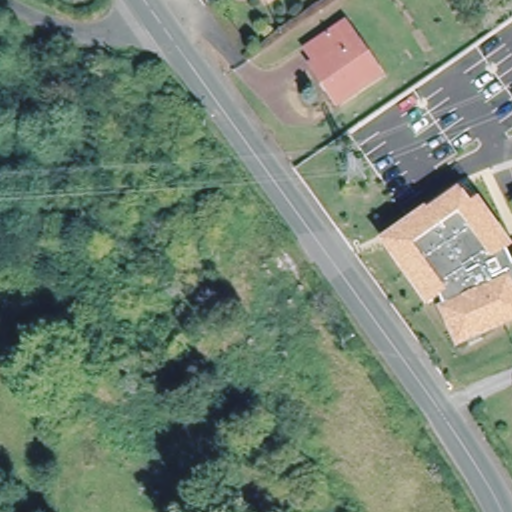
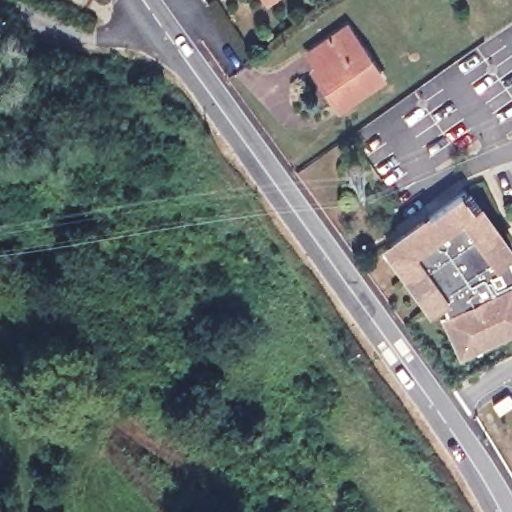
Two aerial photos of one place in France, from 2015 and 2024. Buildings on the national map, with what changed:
unchanged [(261,2),(259,0),(265,0),(261,2)]
unchanged [(382,80),(338,110),(312,70),(316,67),(308,54),(347,27),(382,80)]
unchanged [(460,189),(472,207),(480,201),(512,242),(512,253),(509,254),(512,261),(512,328),(456,353),(440,311),(445,308),(441,301),(426,311),(378,244),(460,189)]

